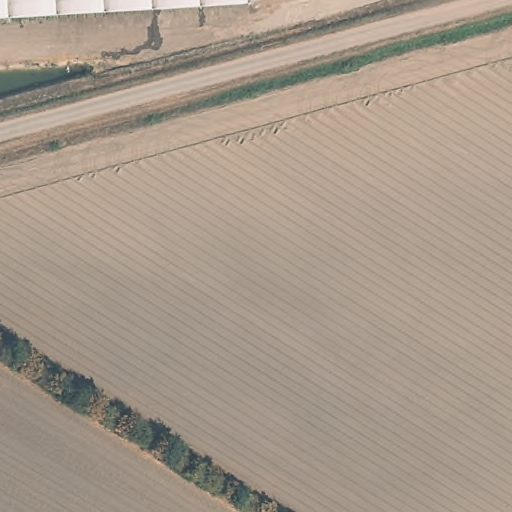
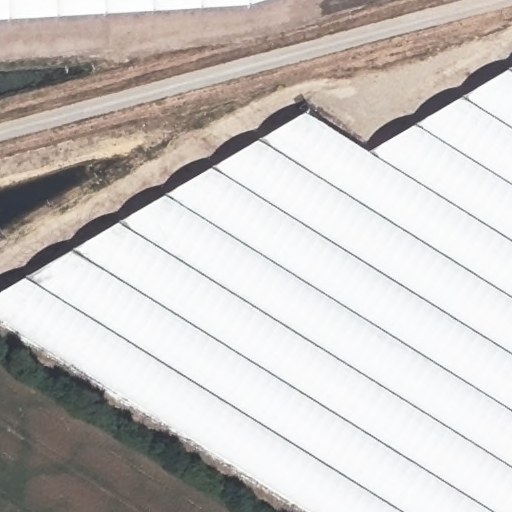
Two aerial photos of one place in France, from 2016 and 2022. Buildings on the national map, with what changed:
unchanged [(0,19),(0,0),(265,0),(250,5),(0,19)]
new [(0,291),(304,113),(367,151),(512,67),(512,512),(307,512),(0,320),(0,291)]

